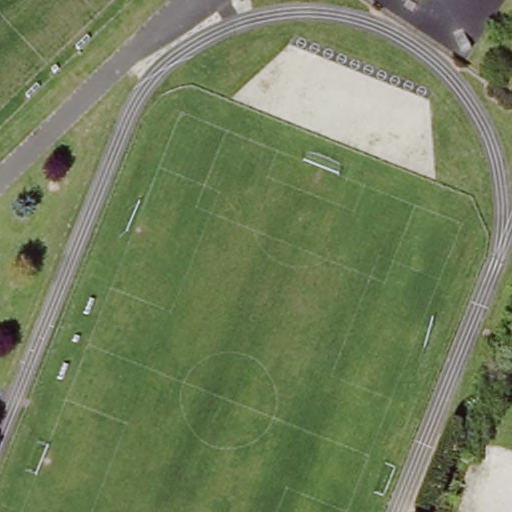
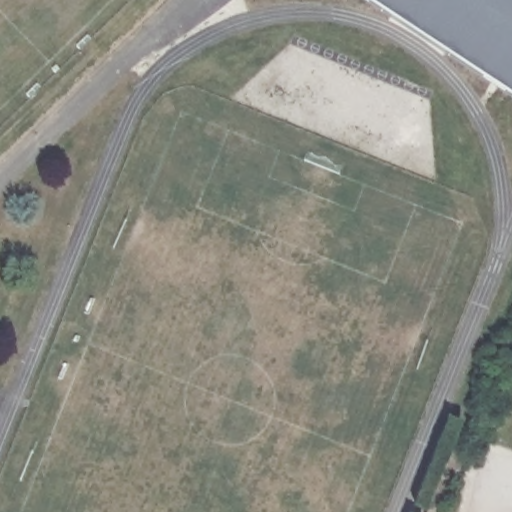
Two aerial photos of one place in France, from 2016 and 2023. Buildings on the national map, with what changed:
new [(369,3),(365,0),(512,0),(512,97),(369,3)]

